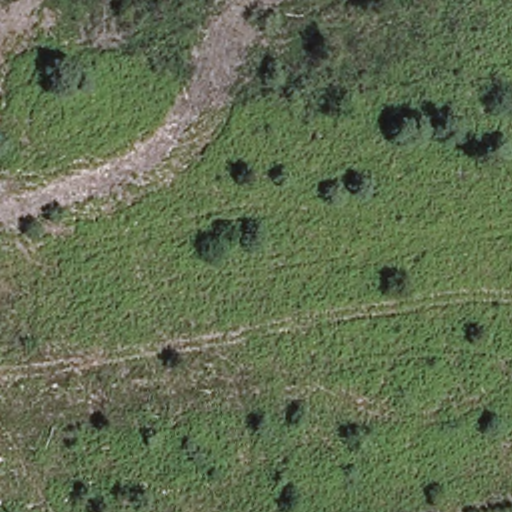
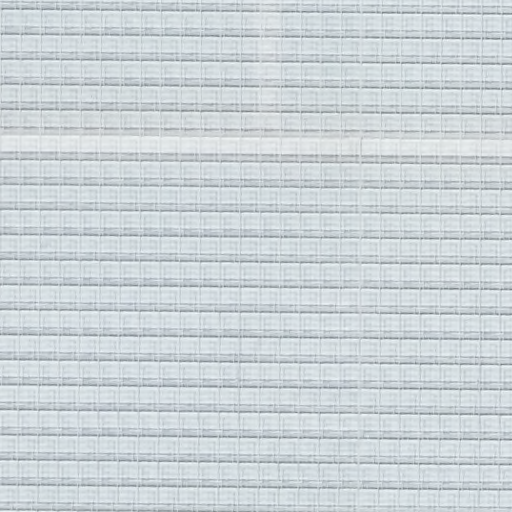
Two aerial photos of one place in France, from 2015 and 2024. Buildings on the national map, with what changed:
new [(512,512),(0,512),(0,0),(512,0),(512,512)]

